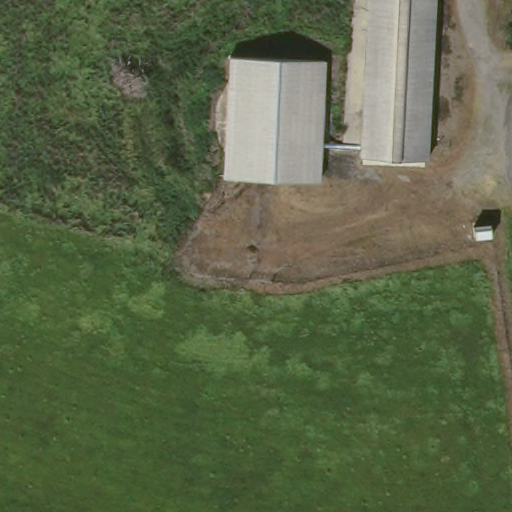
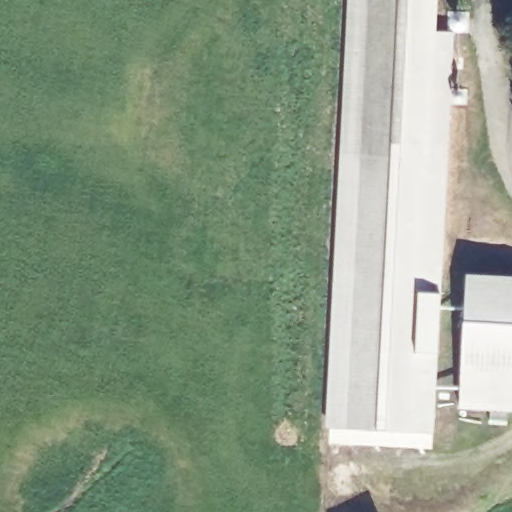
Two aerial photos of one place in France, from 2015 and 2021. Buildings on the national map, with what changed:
new [(325,427),(345,0),(436,0),(434,31),(452,34),(433,432),(325,427)]
demolished [(364,155),(372,0),(442,0),(436,99),(433,158),(411,157),(364,155)]
demolished [(229,55),(326,62),(321,178),(226,176),(229,55)]
new [(464,275),(512,278),(512,374),(459,371),(464,275)]

